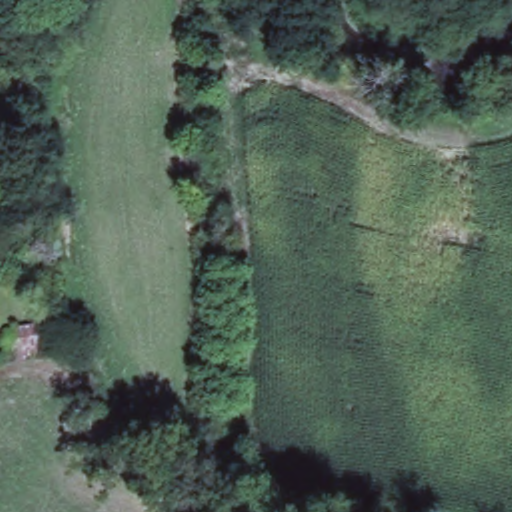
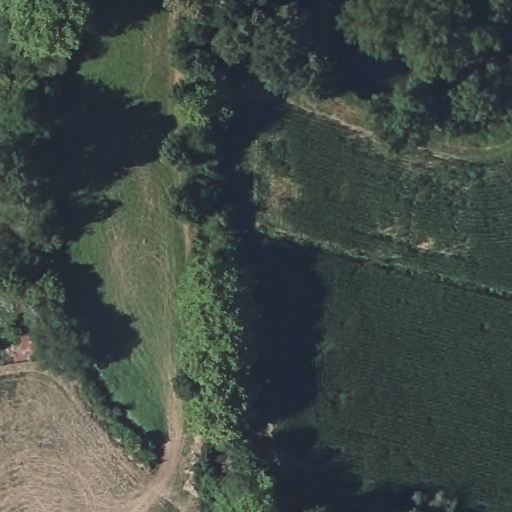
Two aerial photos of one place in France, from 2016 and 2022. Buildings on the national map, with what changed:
unchanged [(49,323),(56,352),(13,360),(9,328),(49,323)]

